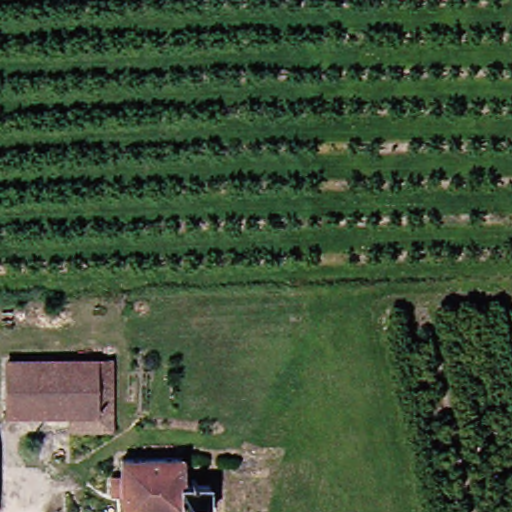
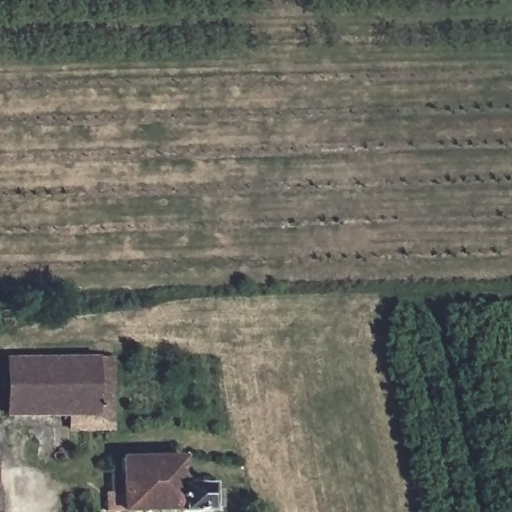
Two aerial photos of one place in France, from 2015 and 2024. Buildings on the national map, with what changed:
unchanged [(62,413),(2,414),(1,362),(102,361),(104,428),(88,430),(63,430),(62,413)]
unchanged [(179,490),(207,491),(207,512),(176,512),(118,512),(117,497),(109,497),(108,481),(117,481),(117,465),(179,464),(179,490)]

